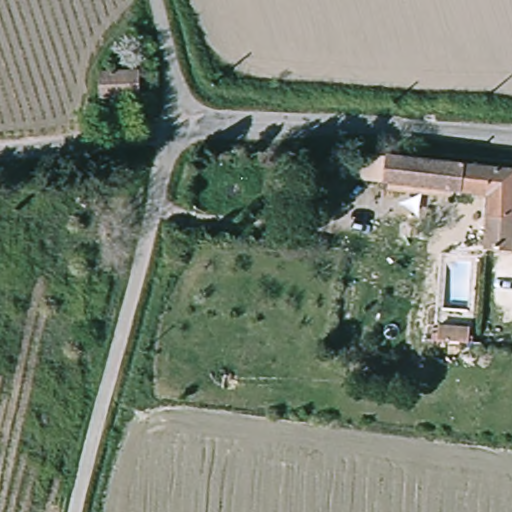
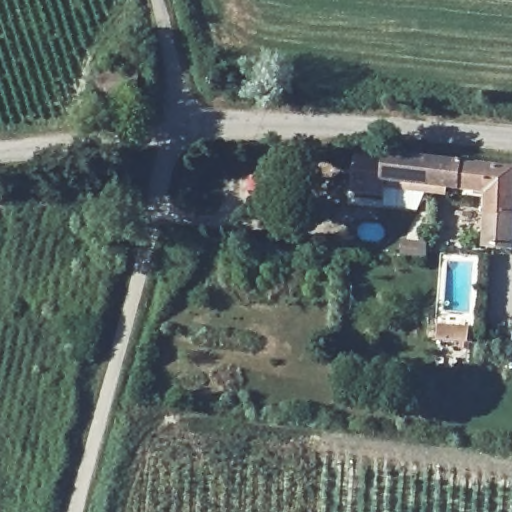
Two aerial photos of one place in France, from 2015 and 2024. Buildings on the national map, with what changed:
unchanged [(143,95),(102,96),(101,67),(142,67),(143,95)]
unchanged [(488,187),(436,180),(416,177),(414,184),(404,182),(404,177),(354,171),(358,146),(388,149),(389,146),(438,152),(512,161),(512,241),(485,239),(488,187)]
unchanged [(438,327),(469,330),(468,343),(437,341),(438,327)]

